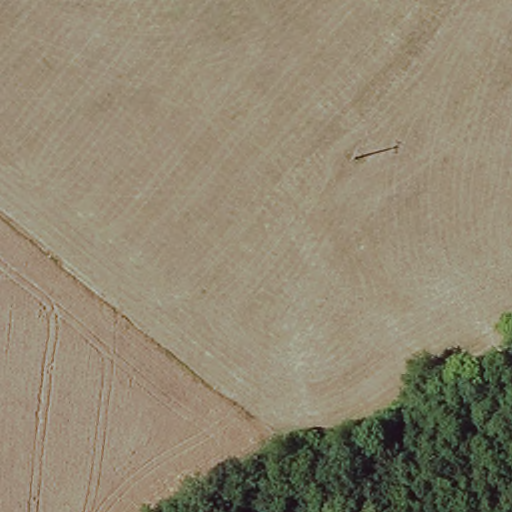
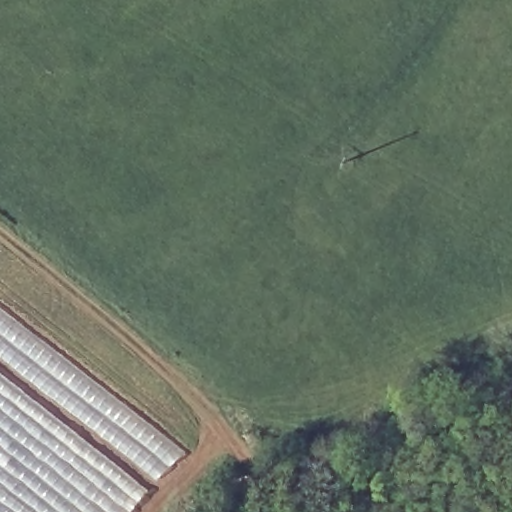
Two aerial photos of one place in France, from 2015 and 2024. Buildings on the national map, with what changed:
demolished [(124,512),(0,512),(0,268),(196,423),(124,512)]

